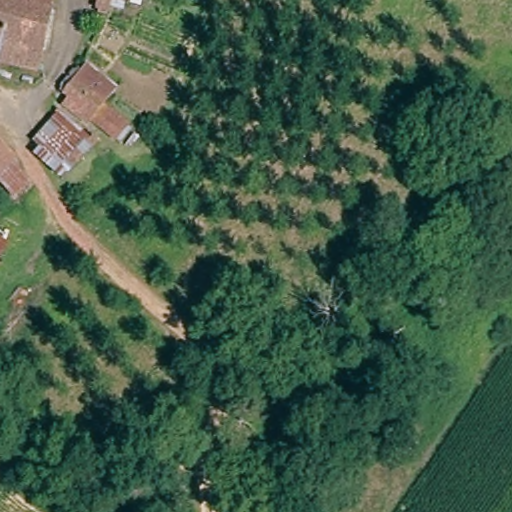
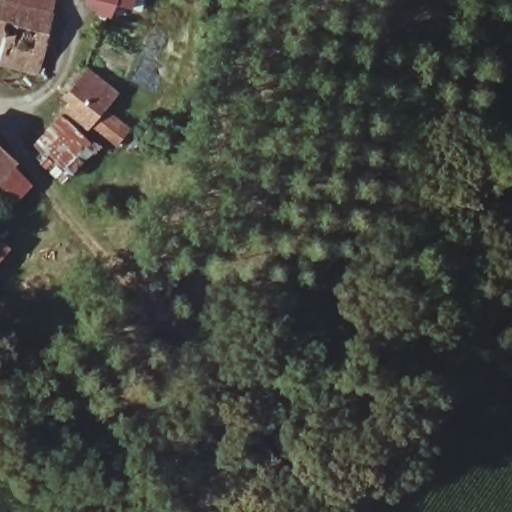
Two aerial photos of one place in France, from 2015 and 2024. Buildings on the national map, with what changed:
unchanged [(0,0),(55,0),(37,73),(0,63),(0,0)]
unchanged [(118,4),(109,1),(109,0),(123,0),(122,5),(118,4)]
unchanged [(31,145),(60,111),(87,66),(120,89),(108,107),(136,131),(123,148),(105,140),(65,182),(31,145)]
unchanged [(0,161),(0,150),(5,156),(0,161)]
unchanged [(0,176),(0,161),(5,156),(13,165),(0,176)]
unchanged [(0,266),(0,237),(14,251),(0,266)]

